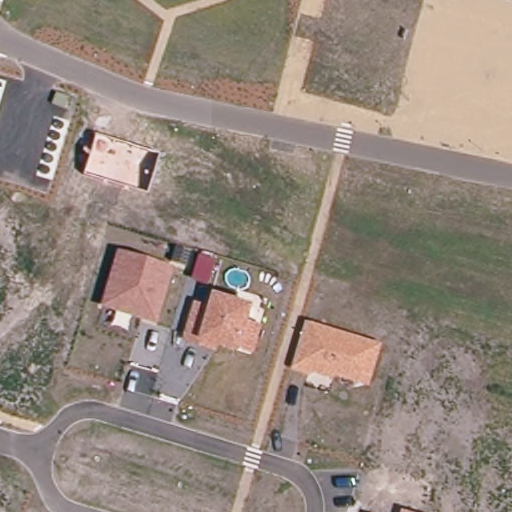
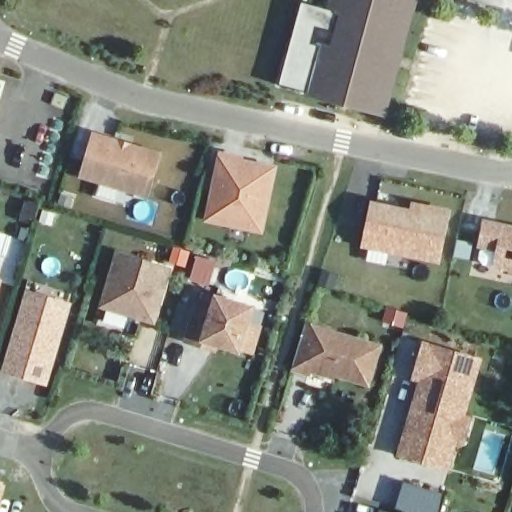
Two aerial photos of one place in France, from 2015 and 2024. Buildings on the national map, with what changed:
new [(304,96),(330,0),(417,0),(387,116),(304,96)]
new [(164,152),(149,199),(79,177),(94,131),(164,152)]
new [(204,221),(219,149),(245,154),(244,158),(277,166),(263,235),(204,221)]
new [(412,200),(451,208),(441,263),(363,248),(372,200),(411,208),(412,200)]
new [(512,270),(494,266),(497,250),(478,247),(484,219),(512,224),(512,270)]
unchanged [(172,267),(156,324),(99,308),(116,251),(172,267)]
new [(2,281),(0,289),(0,280),(2,281)]
new [(73,302),(49,386),(0,372),(26,289),(73,302)]
unchanged [(210,308),(215,294),(254,306),(250,321),(262,325),(254,355),(241,353),(217,346),(215,354),(181,346),(193,302),(210,308)]
unchanged [(382,344),(370,388),(313,372),(311,377),(291,371),(306,321),(382,344)]
new [(397,458),(418,384),(412,382),(423,342),(483,361),(467,416),(473,417),(465,446),(458,444),(450,473),(397,458)]
new [(7,484),(0,508),(0,481),(7,484)]
new [(402,510),(396,509),(405,483),(447,495),(442,512),(410,512),(402,510)]
unchanged [(410,512),(401,512),(402,510),(410,512)]

